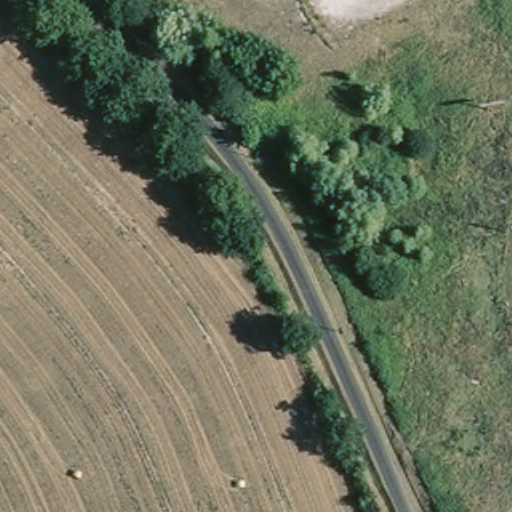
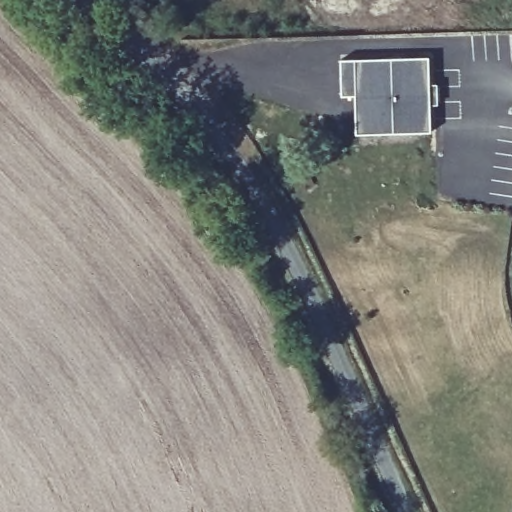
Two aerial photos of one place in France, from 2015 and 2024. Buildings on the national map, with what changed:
new [(434,53),(437,130),(361,132),(360,93),(346,94),(345,57),(434,53)]

